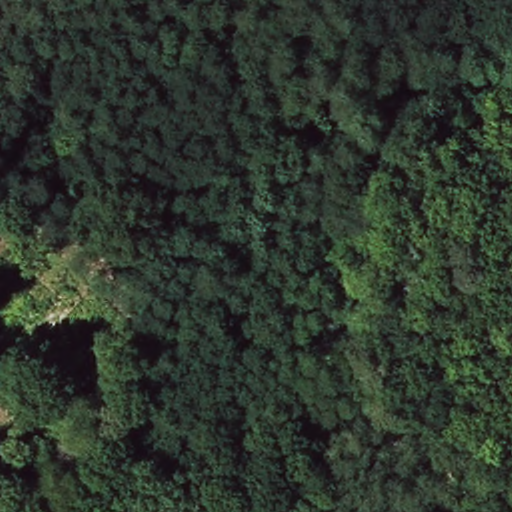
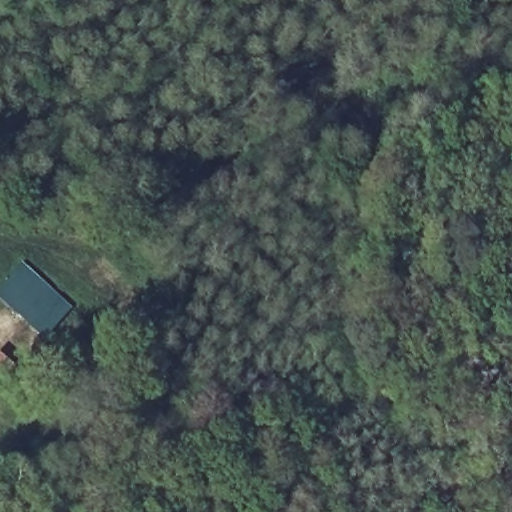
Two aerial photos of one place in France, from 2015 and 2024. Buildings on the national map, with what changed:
new [(71,308),(42,342),(0,303),(0,287),(20,265),(71,308)]

